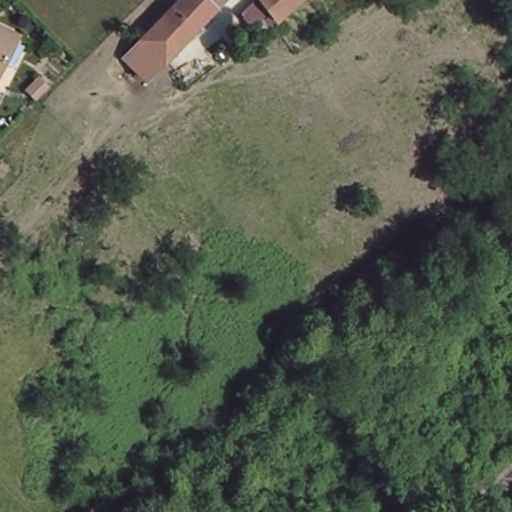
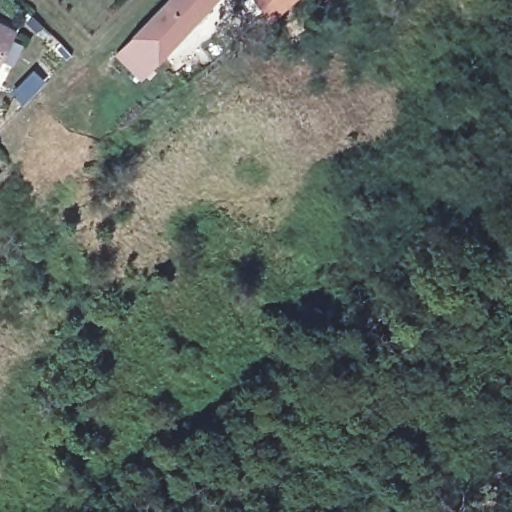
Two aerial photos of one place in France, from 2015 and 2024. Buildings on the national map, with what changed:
unchanged [(110,53),(162,0),(207,0),(131,78),(110,53)]
unchanged [(238,0),(301,0),(268,26),(238,0)]
unchanged [(0,53),(0,30),(7,33),(0,53)]

